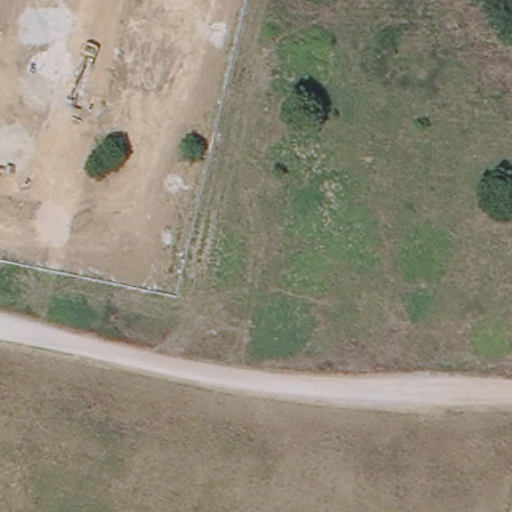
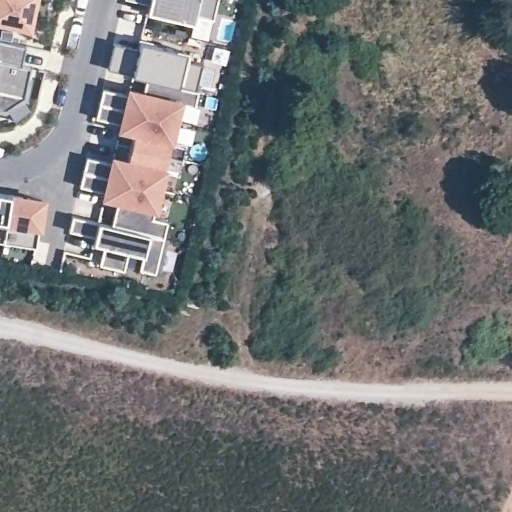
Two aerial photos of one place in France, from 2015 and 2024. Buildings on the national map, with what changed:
new [(0,21),(0,0),(30,0),(25,27),(0,21)]
new [(192,15),(190,23),(156,15),(158,7),(125,0),(215,0),(210,20),(192,15)]
new [(145,13),(147,5),(158,7),(156,15),(145,13)]
new [(21,46),(15,75),(24,77),(20,96),(1,109),(0,109),(0,41),(21,46)]
new [(103,70),(109,44),(144,52),(146,44),(182,52),(180,60),(197,64),(191,91),(103,70)]
new [(99,89),(123,95),(125,91),(138,94),(142,79),(193,91),(190,106),(175,103),(171,121),(95,104),(99,89)]
new [(95,104),(171,121),(166,140),(181,144),(177,159),(125,147),(129,133),(115,130),(116,125),(91,119),(95,104)]
new [(79,166),(82,157),(107,164),(108,159),(122,162),(125,147),(177,159),(173,177),(158,174),(154,190),(120,182),(121,180),(79,170),(79,166)]
new [(79,170),(121,180),(120,182),(154,190),(147,218),(162,222),(158,238),(106,226),(112,202),(98,198),(100,193),(74,187),(79,170)]
new [(5,195),(0,224),(0,194),(5,195)]
new [(5,195),(38,201),(28,262),(0,258),(0,224),(5,195)]
new [(67,216),(106,226),(158,238),(149,274),(134,270),(137,255),(123,252),(118,271),(93,265),(98,246),(88,243),(89,237),(64,231),(67,216)]

